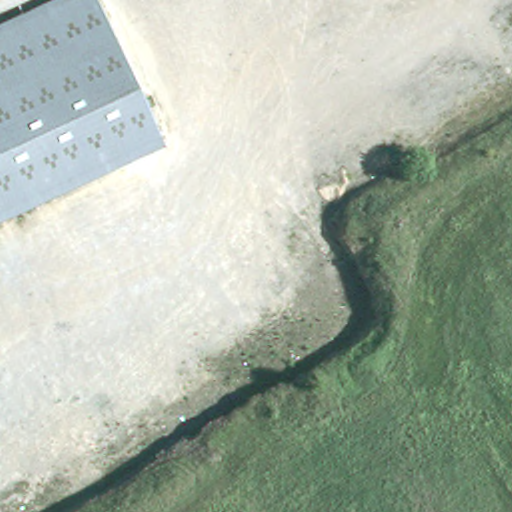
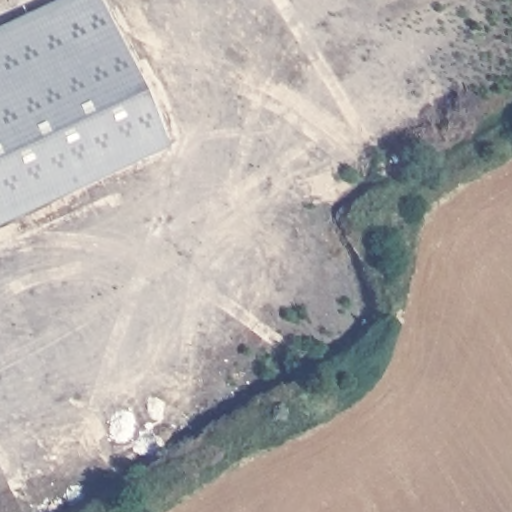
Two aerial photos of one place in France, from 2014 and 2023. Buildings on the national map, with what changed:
unchanged [(176,147),(0,230),(0,40),(84,0),(101,0),(176,147)]

